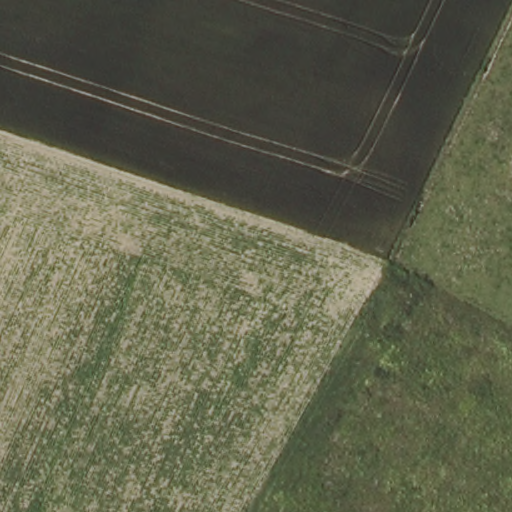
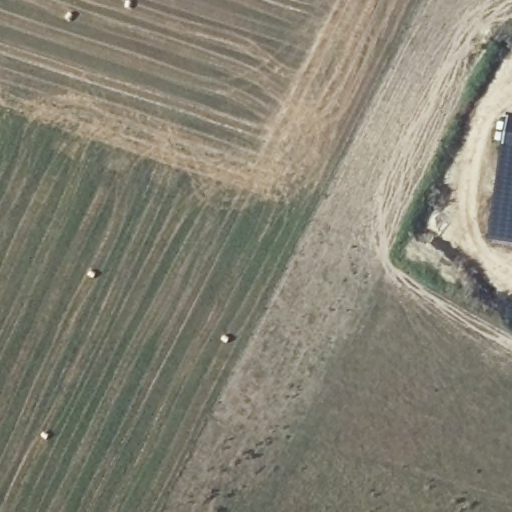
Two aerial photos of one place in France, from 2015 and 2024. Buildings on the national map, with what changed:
new [(512,121),(512,248),(487,244),(507,120),(512,121)]

